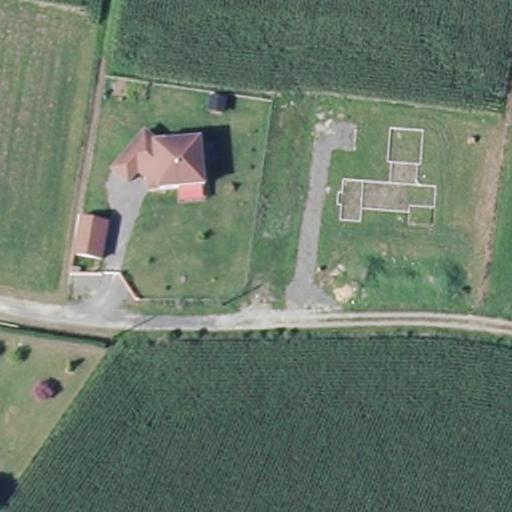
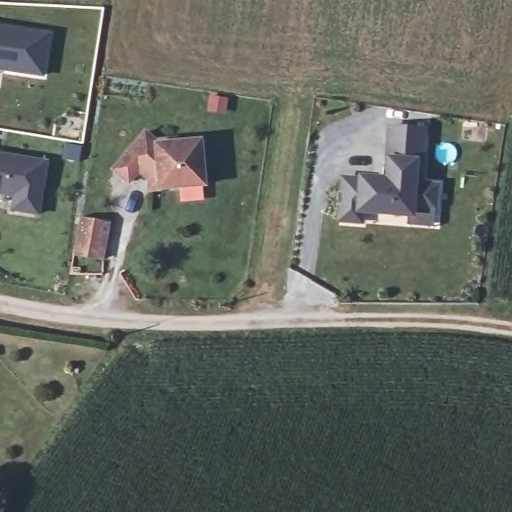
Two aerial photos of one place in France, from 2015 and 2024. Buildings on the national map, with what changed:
new [(42,76),(0,69),(0,27),(48,34),(42,76)]
new [(360,207),(359,220),(337,218),(339,203),(335,202),(336,190),(340,190),(341,177),(388,181),(390,161),(386,161),(389,126),(422,129),(419,164),(416,164),(415,179),(419,183),(435,185),(433,207),(431,226),(404,224),(406,211),(360,207)]
unchanged [(207,183),(151,188),(150,180),(139,170),(130,181),(114,167),(147,130),(157,139),(176,137),(177,141),(203,138),(207,183)]
new [(45,162),(36,215),(11,210),(13,196),(0,194),(0,155),(45,162)]
unchanged [(108,257),(78,253),(84,215),(113,220),(108,257)]

